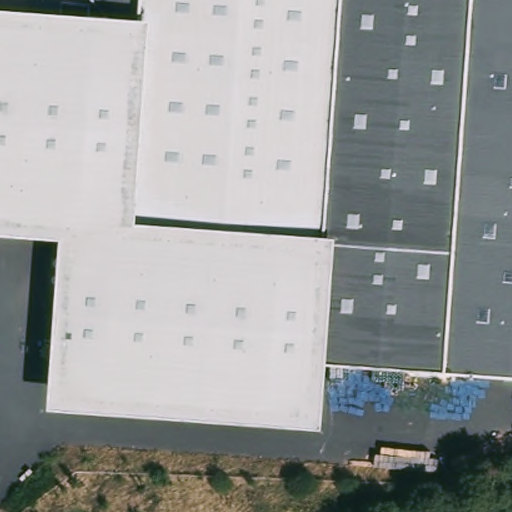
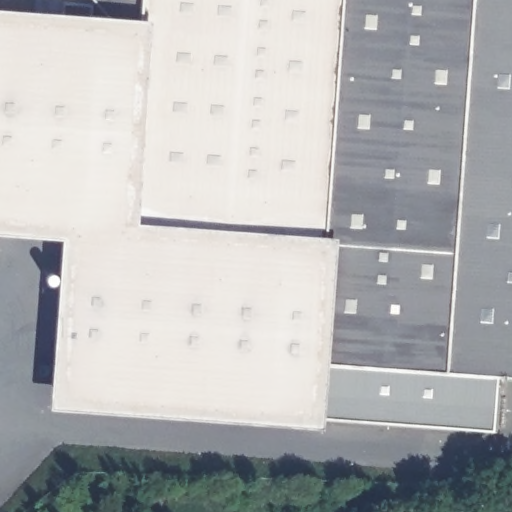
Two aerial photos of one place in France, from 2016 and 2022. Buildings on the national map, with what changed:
unchanged [(446,373),(316,364),(312,419),(60,401),(71,231),(23,228),(0,227),(0,23),(70,28),(71,6),(100,8),(99,30),(115,31),(97,0),(471,0),(446,373)]
unchanged [(446,373),(470,9),(471,0),(512,0),(512,378),(446,373)]
new [(312,419),(316,364),(446,373),(494,376),(490,428),(312,419)]

